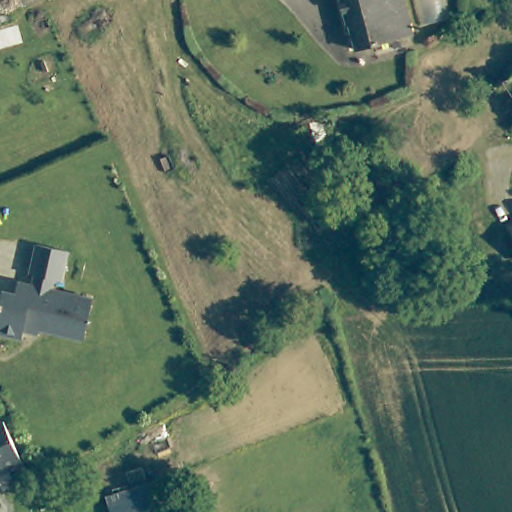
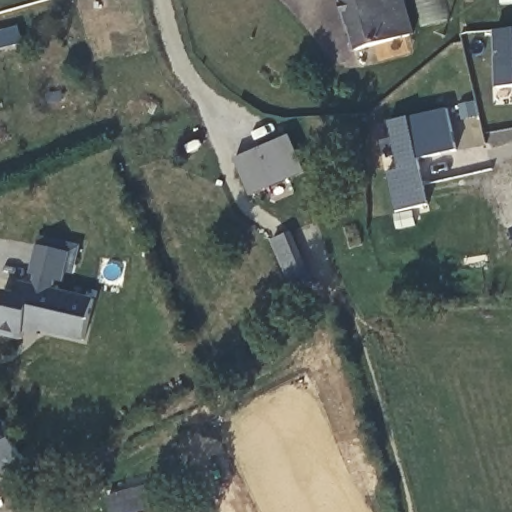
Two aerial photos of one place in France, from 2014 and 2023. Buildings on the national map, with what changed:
unchanged [(412,35),(353,54),(338,0),(401,0),(412,35)]
new [(512,30),(512,87),(500,88),(497,31),(512,30)]
new [(458,151),(419,160),(431,205),(397,213),(387,173),(398,170),(388,122),(448,110),(458,151)]
demolished [(512,134),(502,120),(512,114),(512,134)]
new [(287,137),(303,173),(249,198),(232,161),(287,137)]
unchanged [(506,226),(512,223),(512,238),(506,226)]
new [(285,241),(307,291),(293,297),(271,247),(285,241)]
unchanged [(49,291),(90,301),(80,342),(21,329),(18,341),(0,337),(0,296),(1,293),(12,296),(15,284),(28,287),(31,277),(26,276),(32,247),(62,254),(56,283),(51,282),(49,291)]
unchanged [(24,465),(0,476),(0,422),(4,420),(24,465)]
unchanged [(131,488),(126,473),(144,467),(157,505),(137,512),(110,512),(105,497),(131,488)]

